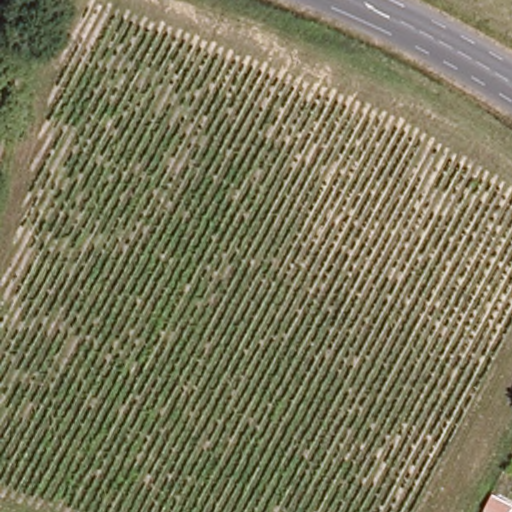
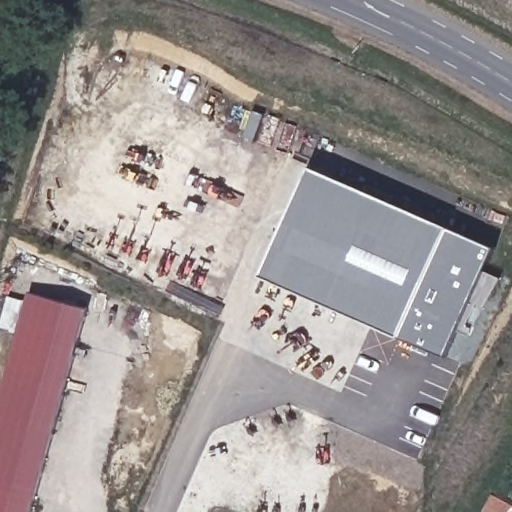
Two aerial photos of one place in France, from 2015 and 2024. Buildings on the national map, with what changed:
new [(356,189),(307,299),(254,275),(302,166),(356,189)]
new [(486,248),(437,356),(307,299),(356,189),(486,248)]
new [(0,512),(0,412),(27,305),(82,319),(33,512),(0,512)]

